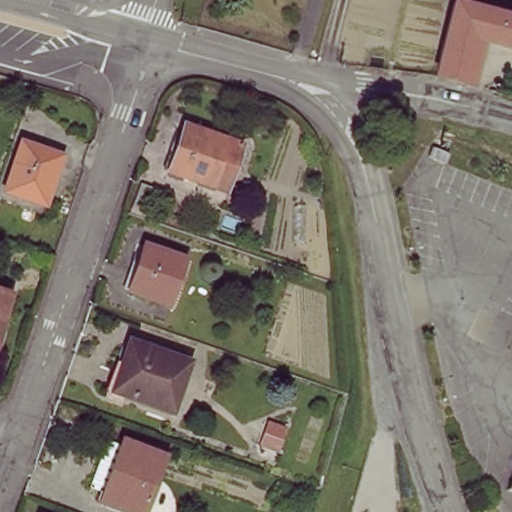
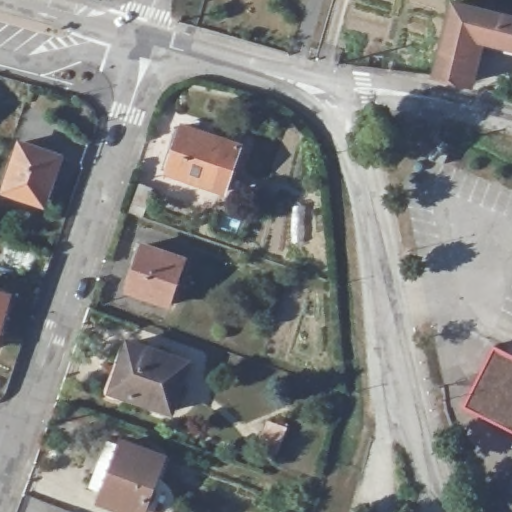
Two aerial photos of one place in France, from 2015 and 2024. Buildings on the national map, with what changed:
unchanged [(512,15),(512,47),(479,39),(467,87),(456,84),(437,81),(455,1),(512,15)]
unchanged [(237,146),(221,192),(164,172),(180,125),(237,146)]
unchanged [(432,141),(426,159),(410,153),(415,135),(432,141)]
unchanged [(57,156),(52,173),(47,171),(36,203),(1,191),(17,143),(57,156)]
unchanged [(183,261),(167,306),(126,292),(142,247),(183,261)]
unchanged [(8,295),(0,325),(0,293),(8,295)]
unchanged [(185,361),(168,410),(111,392),(128,343),(185,361)]
new [(491,356),(512,367),(512,444),(461,418),(491,356)]
unchanged [(132,447),(170,460),(152,512),(132,512),(112,505),(115,497),(100,492),(116,445),(130,450),(132,447)]

